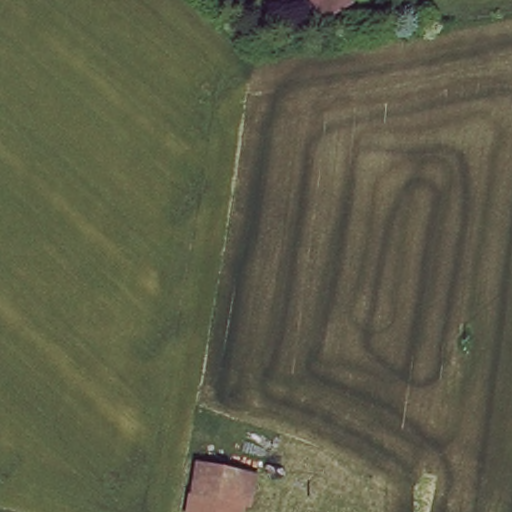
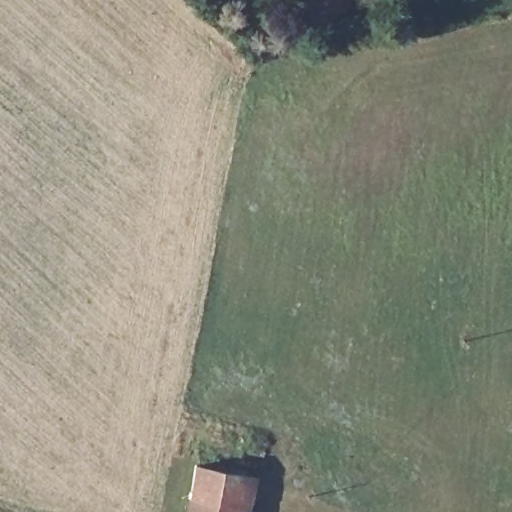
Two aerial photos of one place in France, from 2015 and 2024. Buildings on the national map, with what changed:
unchanged [(306,0),(348,0),(351,3),(319,23),(306,0)]
unchanged [(184,512),(190,476),(238,485),(235,510),(247,512),(184,512)]

